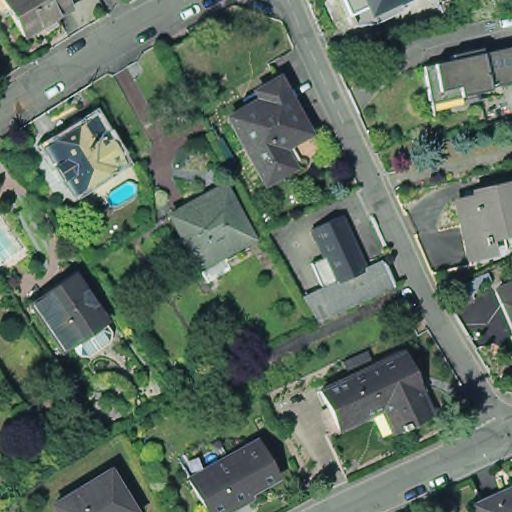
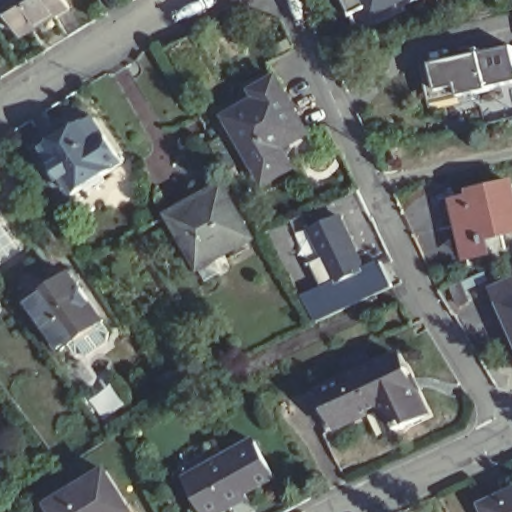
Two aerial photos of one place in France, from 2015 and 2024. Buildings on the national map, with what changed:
unchanged [(6,3),(12,0),(67,0),(74,12),(59,21),(45,29),(28,40),(6,3)]
unchanged [(411,14),(385,27),(376,10),(357,18),(349,0),(420,0),(407,6),(411,14)]
unchanged [(192,36),(216,79),(189,94),(165,50),(192,36)]
unchanged [(512,47),(512,87),(462,98),(460,90),(428,95),(421,67),(512,47)]
unchanged [(313,138),(287,153),(297,172),(270,187),(233,123),(265,105),(260,96),(281,84),(313,138)]
unchanged [(110,137),(110,136),(130,166),(78,198),(68,184),(67,185),(58,171),(60,171),(48,153),(91,125),(92,126),(100,121),(110,137)]
unchanged [(465,269),(461,250),(451,206),(476,201),(475,196),(508,188),(512,204),(512,236),(498,239),(503,260),(465,269)]
unchanged [(178,218),(227,191),(256,242),(209,269),(205,271),(175,219),(178,218)]
unchanged [(368,271),(328,290),(315,264),(328,257),(315,230),(341,217),(368,271)]
unchanged [(386,261),(397,286),(321,324),(308,300),(328,290),(368,271),(386,261)]
unchanged [(108,325),(66,355),(34,309),(76,279),(108,325)]
unchanged [(507,318),(501,304),(512,300),(512,330),(507,318)]
unchanged [(413,372),(436,417),(412,429),(413,431),(406,435),(405,432),(395,437),(385,414),(342,435),(324,396),(401,359),(409,374),(413,372)]
unchanged [(277,474),(248,491),(250,495),(219,512),(210,512),(192,479),(260,441),(277,474)]
unchanged [(134,512),(57,512),(56,510),(112,476),(134,512)]
unchanged [(487,510),(512,499),(512,512),(488,512),(487,510)]

